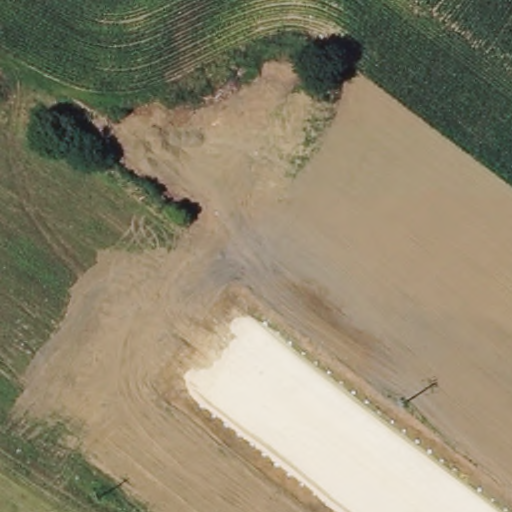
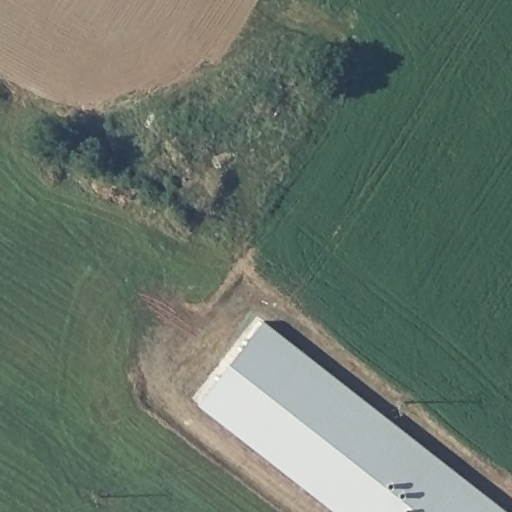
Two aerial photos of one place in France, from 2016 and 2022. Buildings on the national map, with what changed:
new [(509,512),(335,512),(199,405),(265,321),(509,512)]

